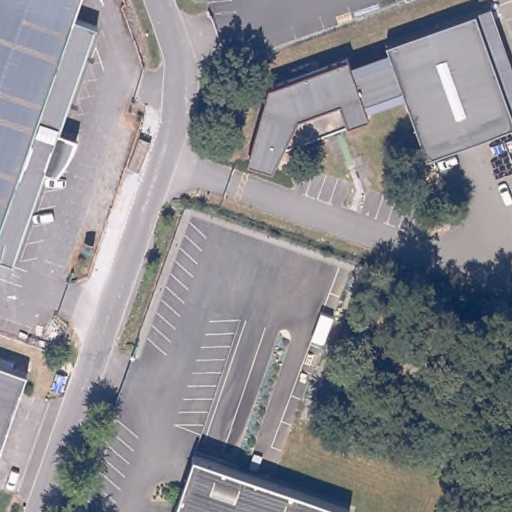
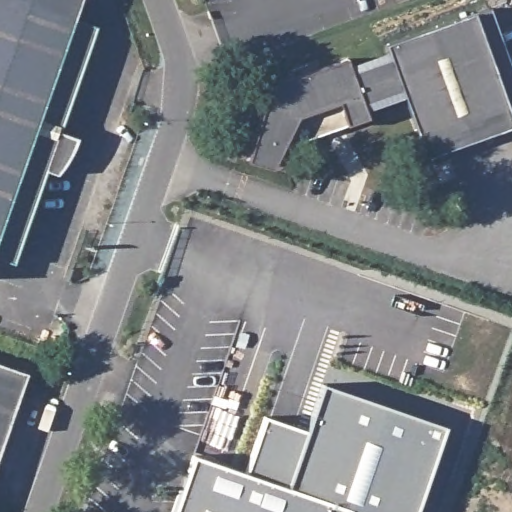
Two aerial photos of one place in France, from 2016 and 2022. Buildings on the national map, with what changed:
unchanged [(83,0),(77,17),(102,26),(20,267),(0,260),(0,0),(83,0)]
unchanged [(367,101),(369,115),(284,144),(279,156),(275,163),(250,157),(259,125),(262,117),(271,85),(350,58),(355,71),(394,57),(390,43),(479,13),(492,8),(501,33),(487,37),(498,70),(512,111),(512,128),(428,156),(405,90),(367,101)]
unchanged [(27,378),(0,455),(0,369),(27,378)]
new [(307,429),(323,383),(447,426),(417,512),(353,512),(352,511),(244,474),(264,416),(307,429)]
unchanged [(352,511),(351,512),(177,512),(196,457),(352,511)]

